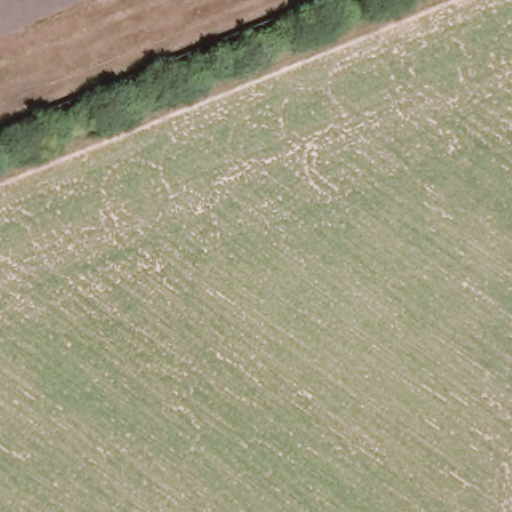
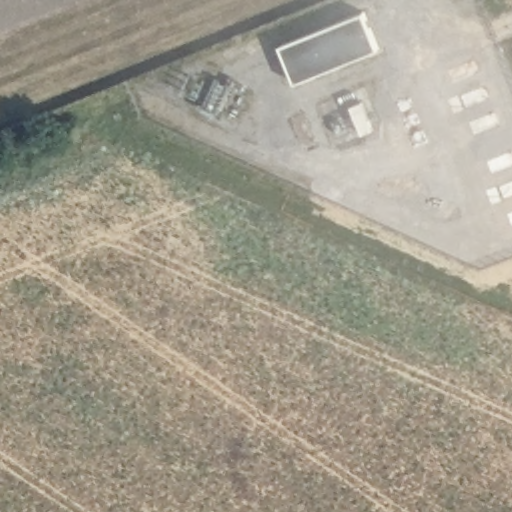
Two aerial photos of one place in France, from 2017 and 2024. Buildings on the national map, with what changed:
new [(380,48),(297,81),(292,68),(282,44),(365,10),(375,34),(380,48)]

